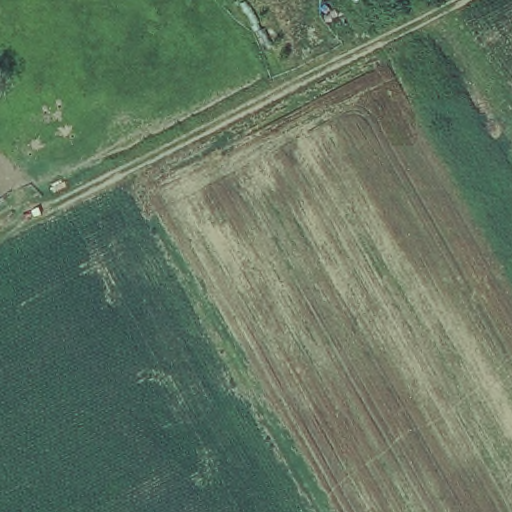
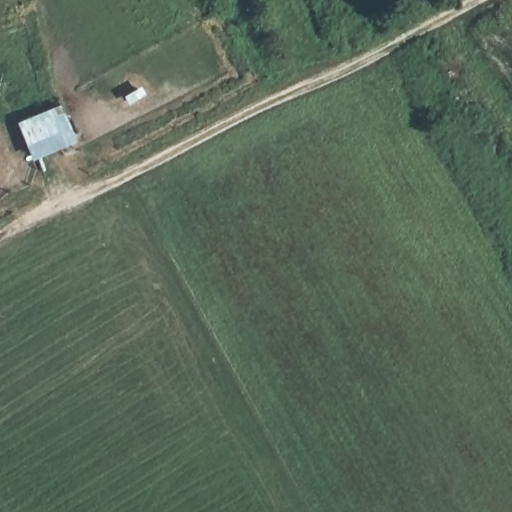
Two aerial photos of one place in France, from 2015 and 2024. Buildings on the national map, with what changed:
new [(63,102),(75,142),(27,161),(15,126),(63,102)]
unchanged [(0,207),(0,204),(1,207),(0,207)]

